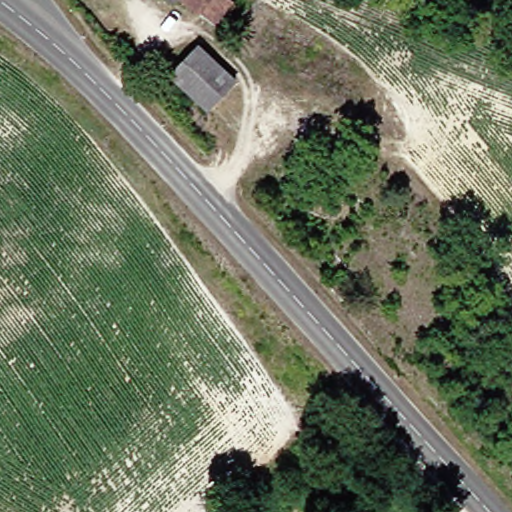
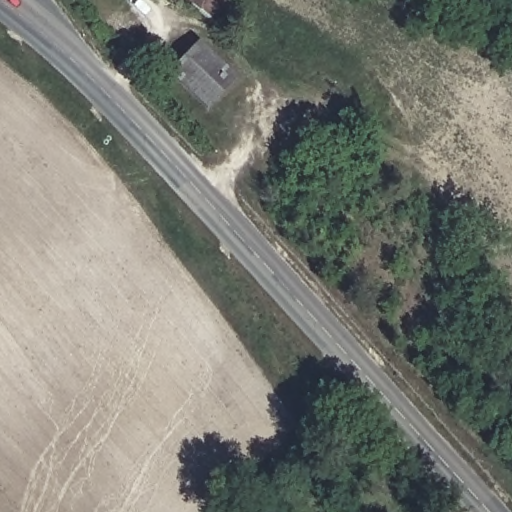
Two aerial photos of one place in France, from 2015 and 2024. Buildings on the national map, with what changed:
unchanged [(182,0),(227,0),(213,21),(182,0)]
unchanged [(188,51),(215,74),(227,84),(207,106),(196,97),(168,75),(188,51)]

